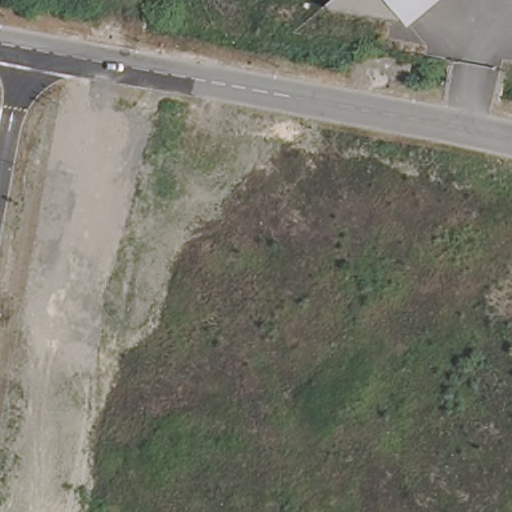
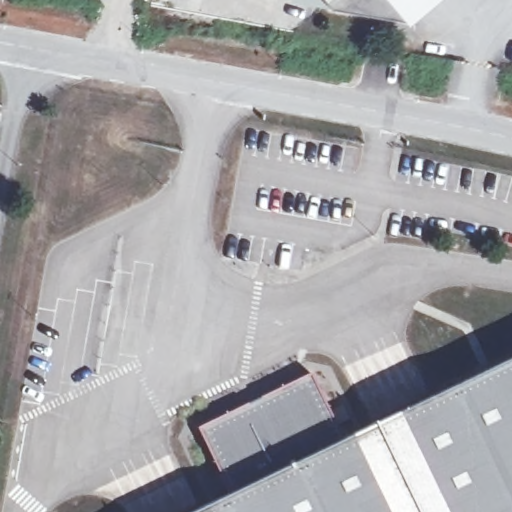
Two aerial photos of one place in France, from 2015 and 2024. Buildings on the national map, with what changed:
unchanged [(408,25),(337,10),(330,4),(334,0),(439,0),(408,25)]
new [(196,427),(309,373),(337,441),(512,357),(512,512),(190,512),(226,495),(196,427)]

